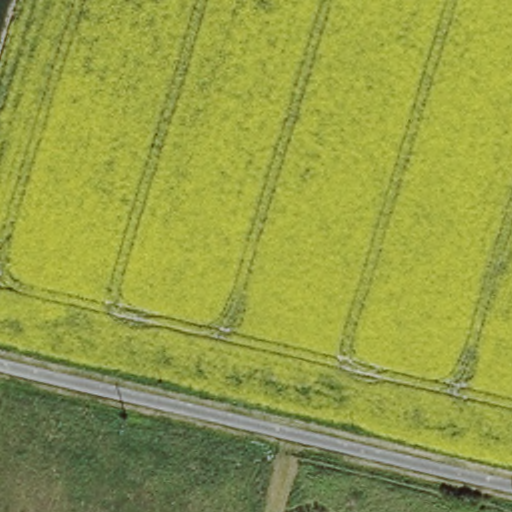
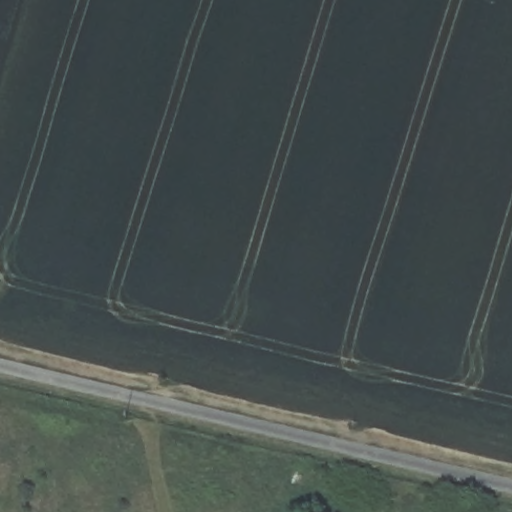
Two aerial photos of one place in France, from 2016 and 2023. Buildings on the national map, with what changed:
[]

